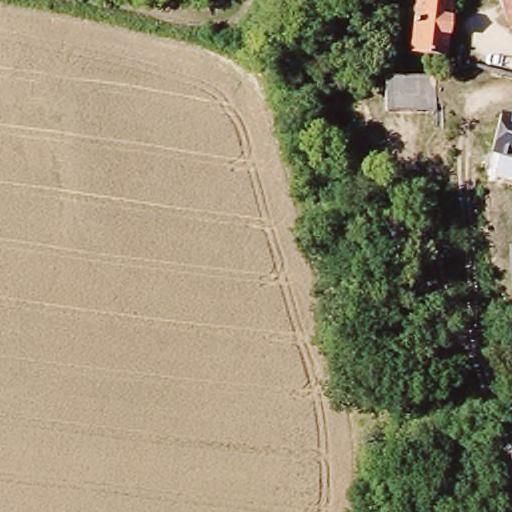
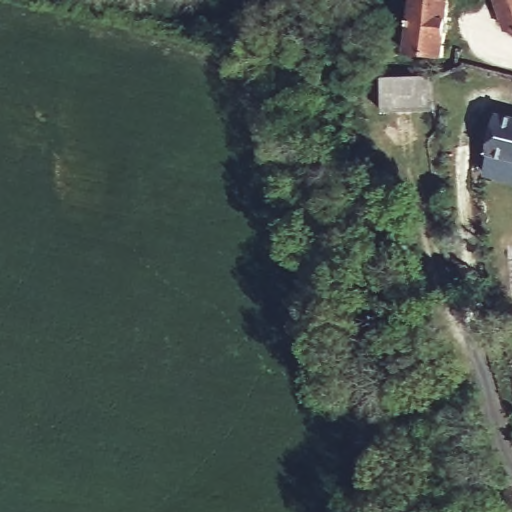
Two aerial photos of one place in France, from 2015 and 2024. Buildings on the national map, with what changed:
unchanged [(415,0),(452,0),(445,64),(425,60),(422,75),(404,71),(415,0)]
unchanged [(512,0),(512,25),(505,20),(499,0),(512,0)]
unchanged [(435,112),(387,113),(387,80),(434,77),(435,112)]
unchanged [(501,120),(512,123),(512,159),(492,152),(501,120)]

